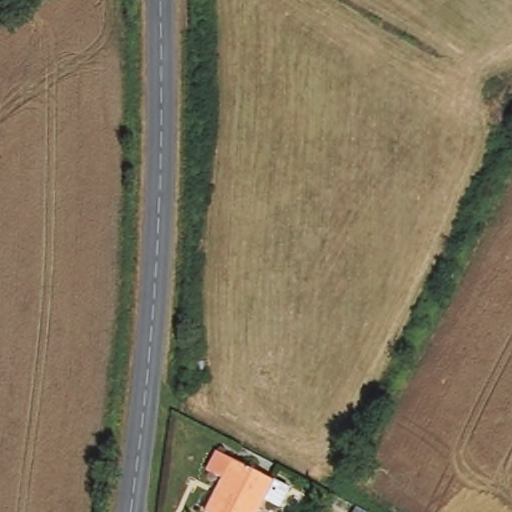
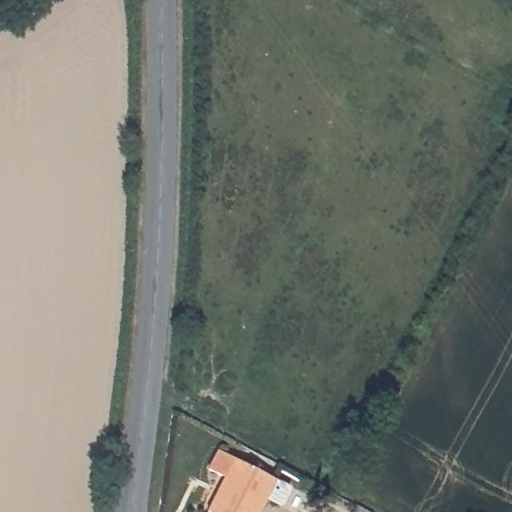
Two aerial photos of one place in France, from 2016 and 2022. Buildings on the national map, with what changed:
unchanged [(229,478),(212,470),(222,451),(294,488),(285,506),(269,498),(262,512),(211,512),(229,478)]

